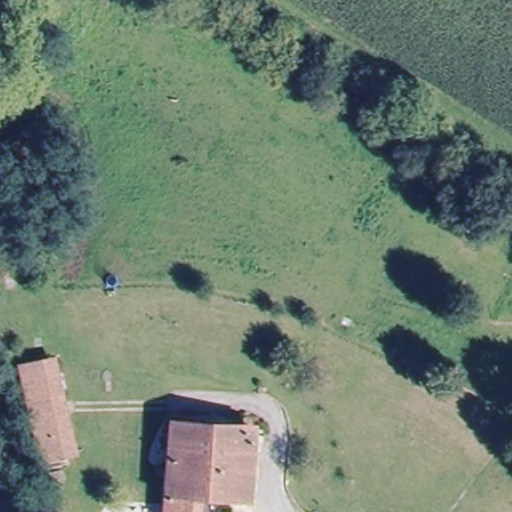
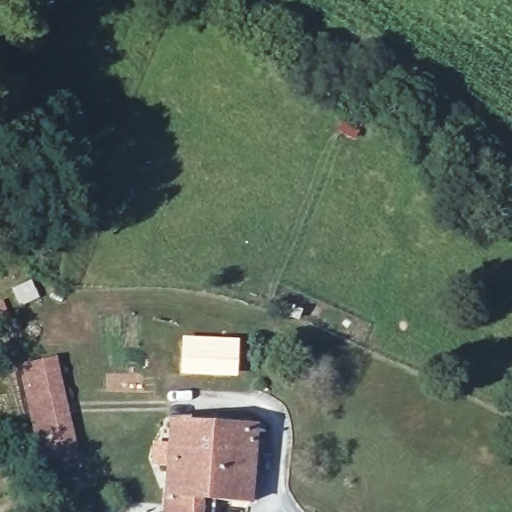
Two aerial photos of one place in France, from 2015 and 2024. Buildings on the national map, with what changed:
new [(181,335),(239,339),(237,377),(179,374),(181,335)]
unchanged [(52,402),(65,398),(73,443),(67,447),(70,459),(43,466),(22,386),(48,382),(52,402)]
unchanged [(250,502),(212,499),(166,497),(169,454),(171,422),(254,427),(253,439),(250,502)]
unchanged [(212,512),(165,512),(166,497),(212,499),(212,512)]

